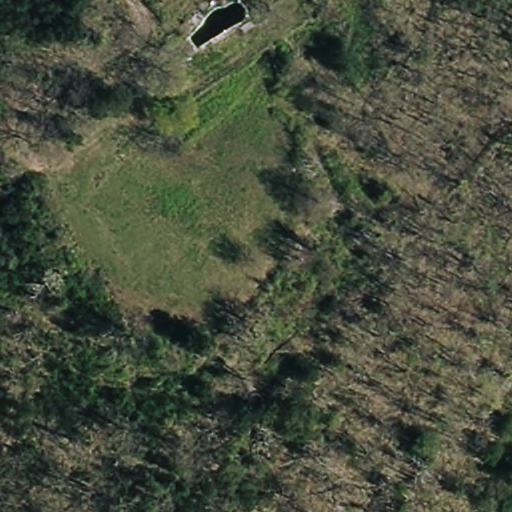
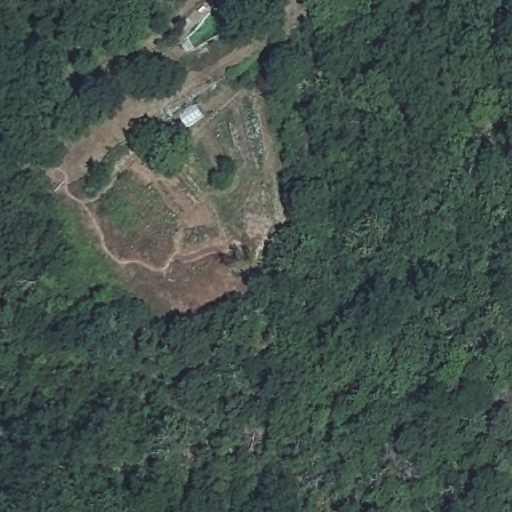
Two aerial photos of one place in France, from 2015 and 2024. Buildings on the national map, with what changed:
[]

